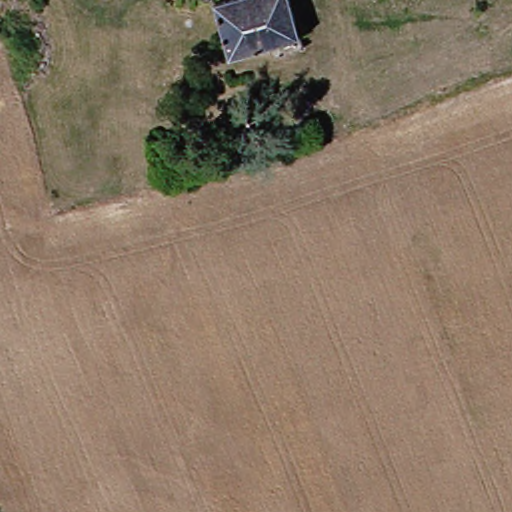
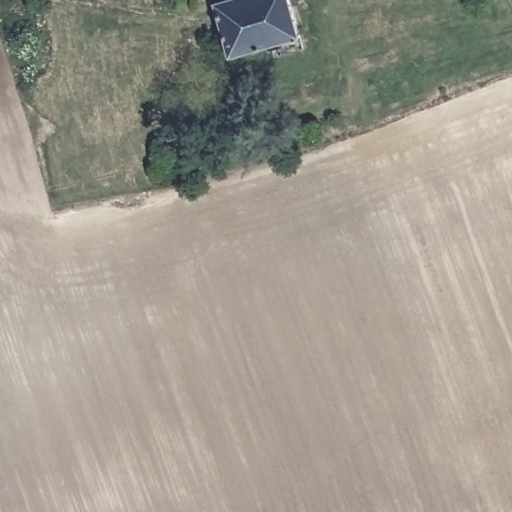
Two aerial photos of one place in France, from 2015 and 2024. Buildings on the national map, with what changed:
unchanged [(230,0),(284,0),(295,34),(227,58),(208,7),(230,0)]

